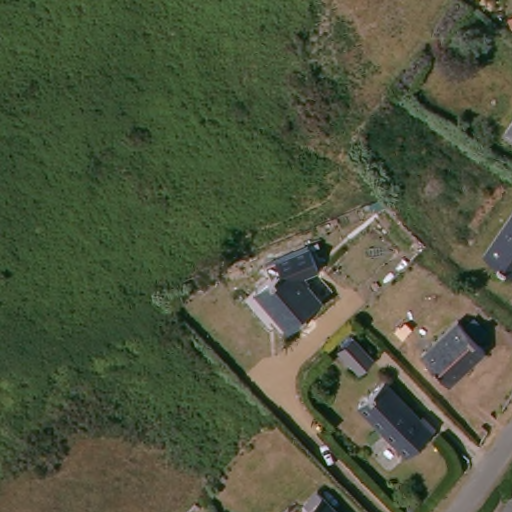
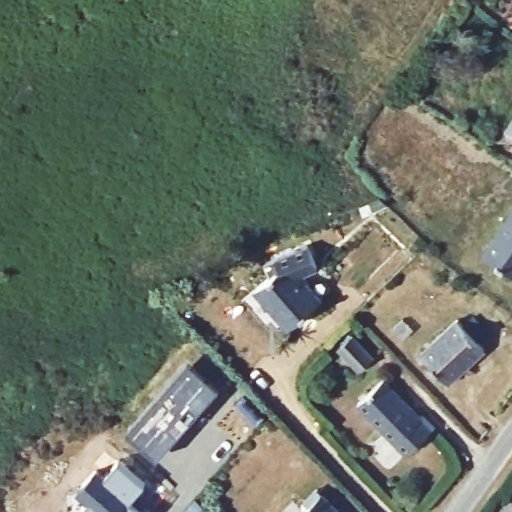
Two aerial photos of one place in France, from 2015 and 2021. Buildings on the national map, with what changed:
unchanged [(500,131),(512,117),(512,141),(500,131)]
unchanged [(512,205),(512,275),(508,280),(476,258),(511,204),(512,205)]
unchanged [(328,304),(283,334),(276,322),(266,327),(246,294),(299,259),(328,304)]
unchanged [(478,349),(441,385),(416,359),(454,323),(478,349)]
unchanged [(378,364),(365,376),(344,354),(357,342),(378,364)]
new [(218,392),(156,464),(124,437),(187,365),(218,392)]
unchanged [(414,420),(421,416),(436,431),(403,461),(356,409),(383,385),(414,420)]
new [(91,501),(80,491),(97,472),(104,478),(119,462),(146,485),(131,502),(143,512),(88,512),(84,508),(91,501)]
unchanged [(313,494),(332,512),(300,512),(300,508),(313,494)]
new [(500,512),(506,500),(512,501),(512,512),(500,512)]

